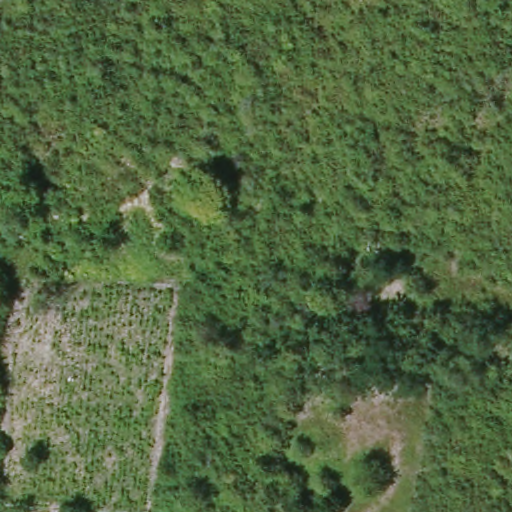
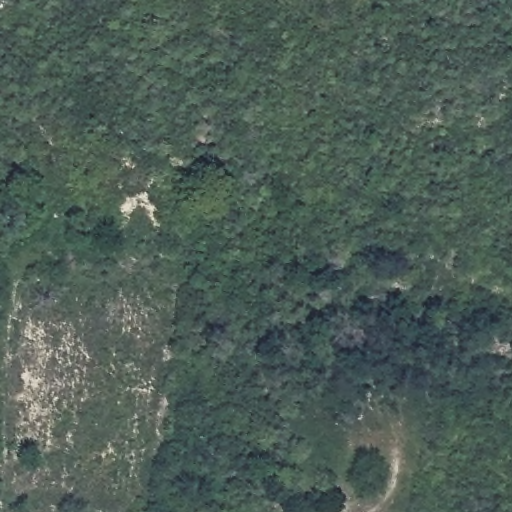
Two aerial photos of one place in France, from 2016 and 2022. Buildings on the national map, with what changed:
[]

